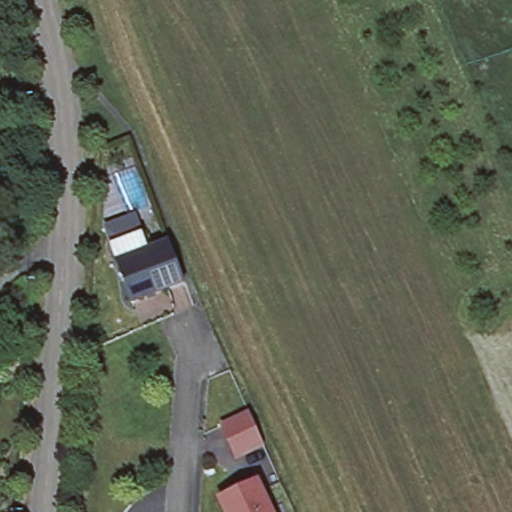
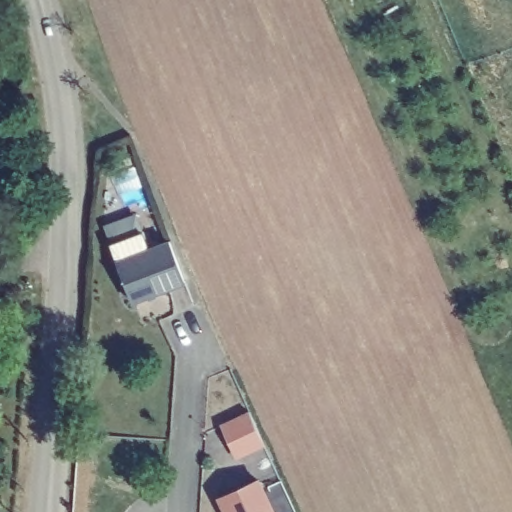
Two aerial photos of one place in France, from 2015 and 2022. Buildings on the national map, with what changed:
unchanged [(131,302),(116,261),(110,244),(142,232),(148,250),(167,242),(183,283),(131,302)]
unchanged [(236,461),(216,425),(247,410),(266,447),(236,461)]
unchanged [(251,477),(268,512),(220,512),(211,495),(251,477)]

